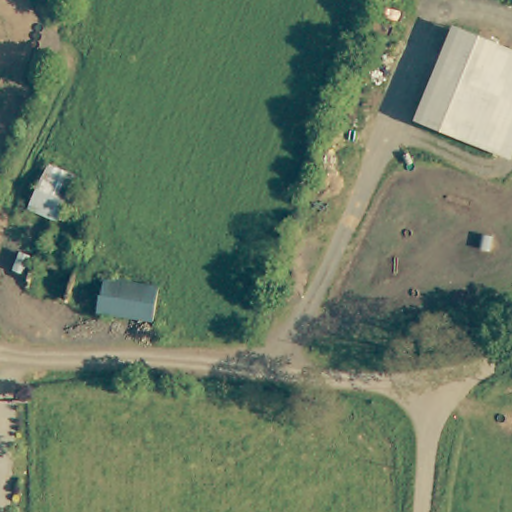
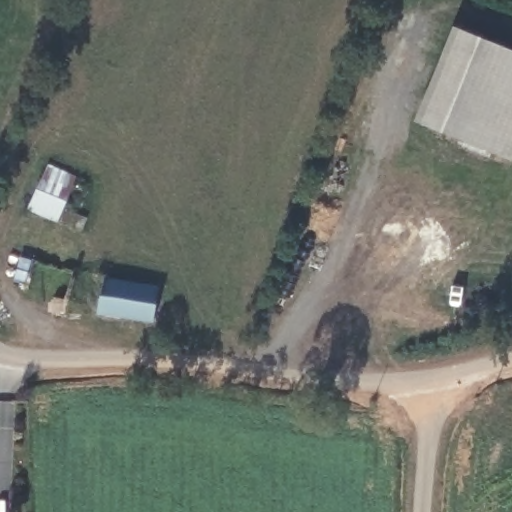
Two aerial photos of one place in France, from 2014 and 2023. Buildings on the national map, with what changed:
unchanged [(499,154),(423,124),(460,30),(512,51),(512,120),(499,154)]
unchanged [(51,164),(80,178),(59,219),(33,207),(51,164)]
unchanged [(116,277),(165,286),(159,320),(104,310),(109,276),(116,277)]

